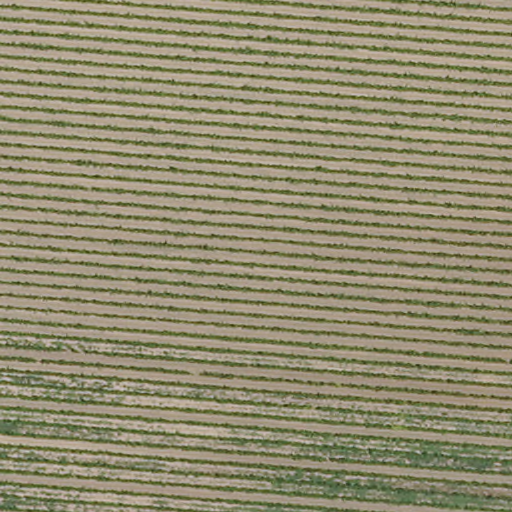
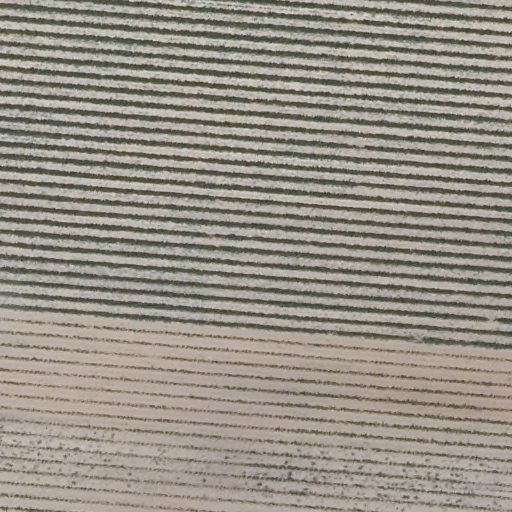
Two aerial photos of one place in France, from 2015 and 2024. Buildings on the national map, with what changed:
[]

